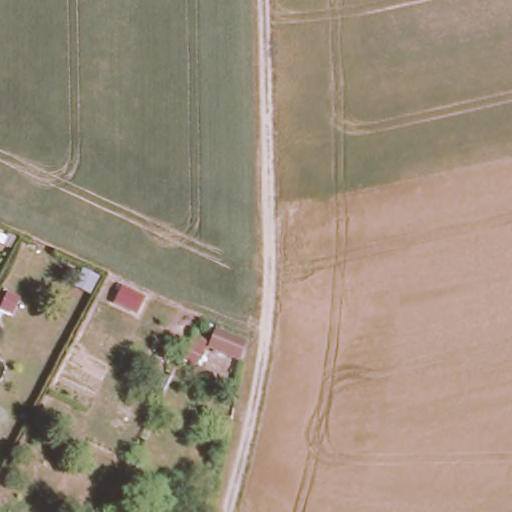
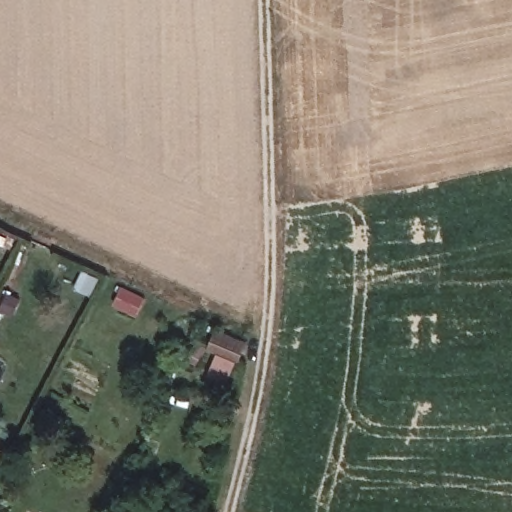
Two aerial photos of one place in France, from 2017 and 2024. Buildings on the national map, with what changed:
unchanged [(240,345),(231,364),(202,349),(211,330),(240,345)]

